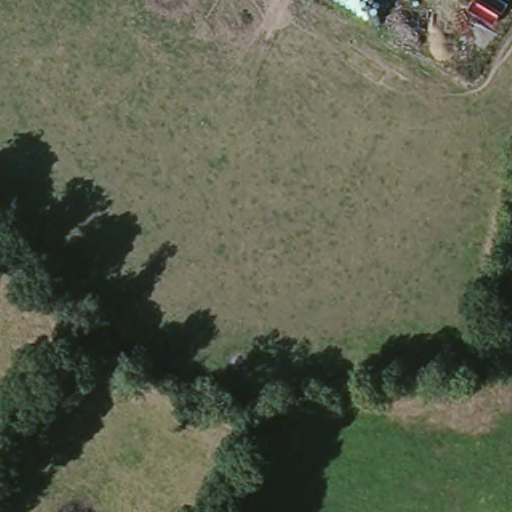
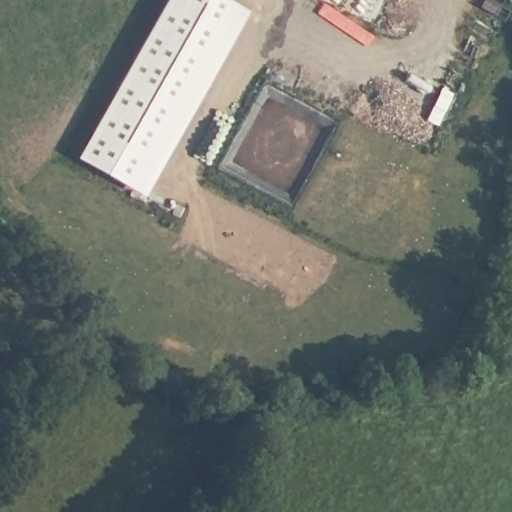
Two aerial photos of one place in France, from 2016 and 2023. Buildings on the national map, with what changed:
new [(76,158),(166,0),(226,0),(248,13),(144,196),(76,158)]

